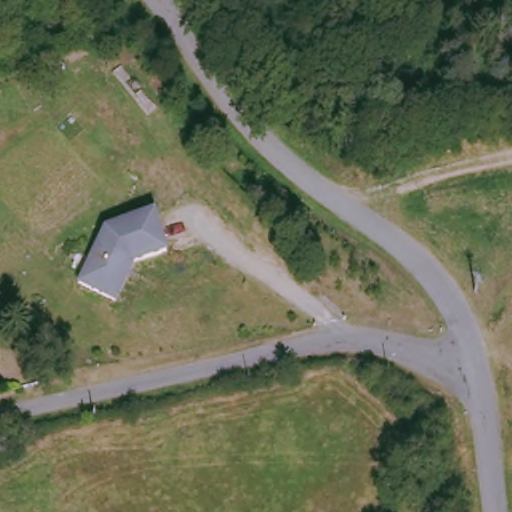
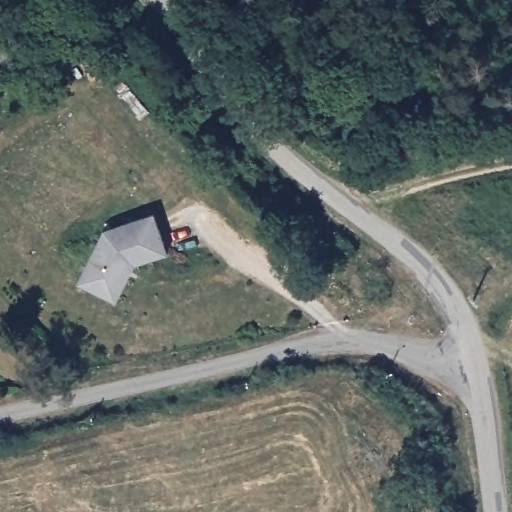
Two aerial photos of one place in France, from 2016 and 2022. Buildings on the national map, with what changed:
unchanged [(168,254),(136,261),(111,295),(78,271),(111,222),(161,215),(168,254)]

